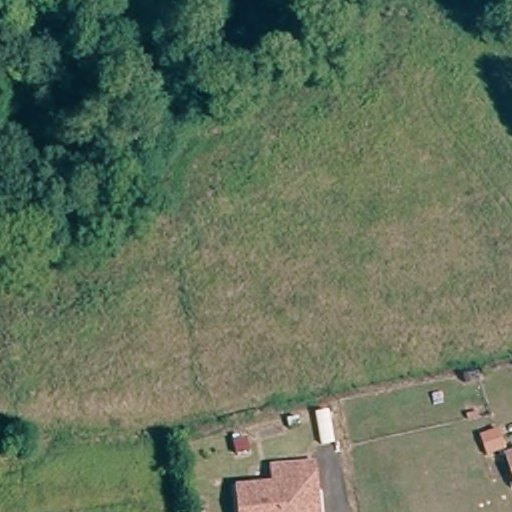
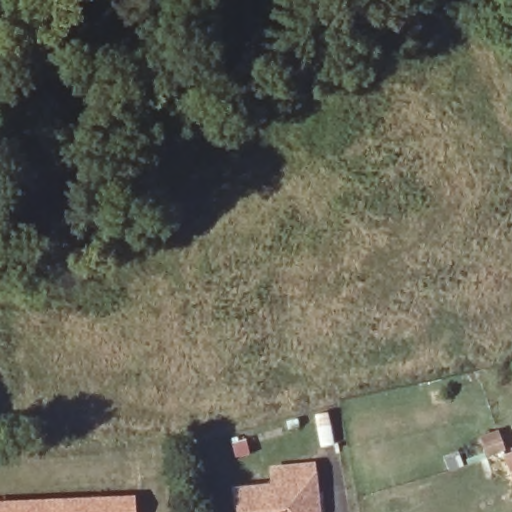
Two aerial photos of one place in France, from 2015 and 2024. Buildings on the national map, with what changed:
unchanged [(330,436),(317,438),(311,407),(324,405),(330,436)]
unchanged [(512,455),(512,467),(508,457),(512,455)]
unchanged [(319,464),(323,482),(330,510),(329,512),(247,512),(244,497),(284,490),(280,472),(319,464)]
new [(136,512),(0,512),(0,500),(135,495),(136,512)]

